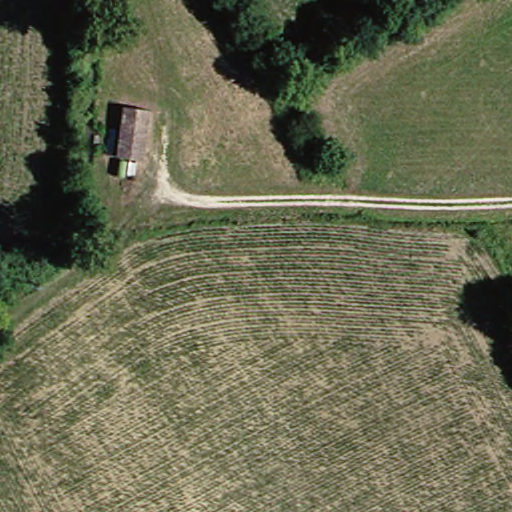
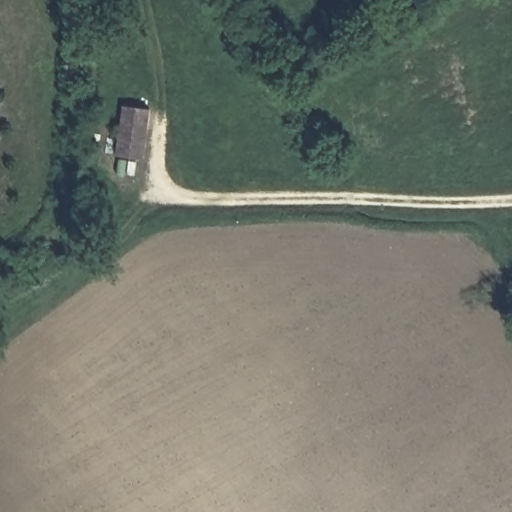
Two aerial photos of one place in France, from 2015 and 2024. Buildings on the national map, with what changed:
unchanged [(154,109),(148,159),(123,156),(129,106),(154,109)]

